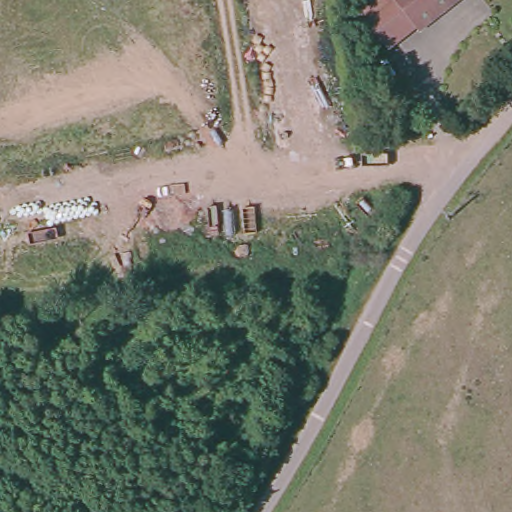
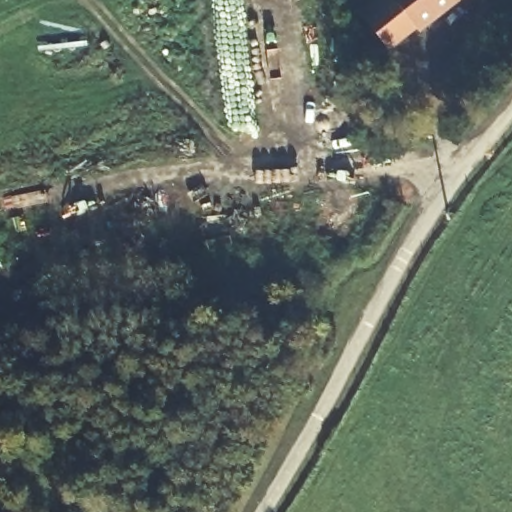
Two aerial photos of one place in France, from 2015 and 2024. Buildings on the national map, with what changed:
unchanged [(435,16),(406,37),(379,0),(466,0),(437,21),(435,16)]

